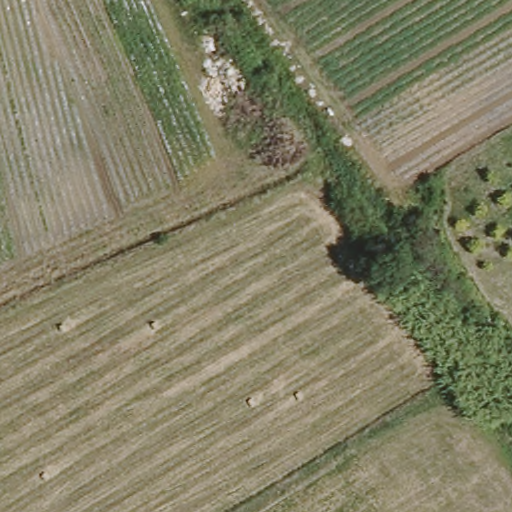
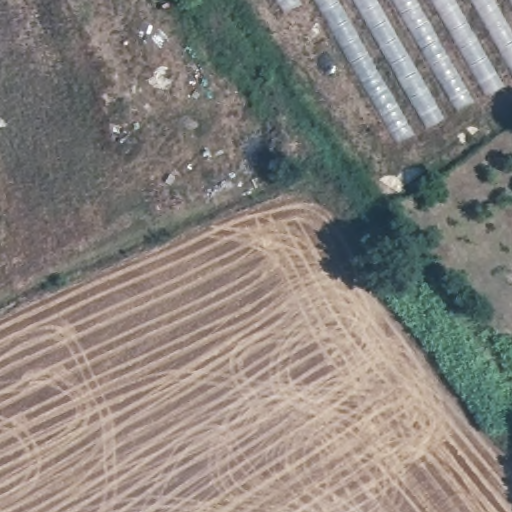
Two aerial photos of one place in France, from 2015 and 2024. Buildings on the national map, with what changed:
new [(276,0),(304,0),(284,13),(276,0)]
new [(397,143),(314,0),(512,0),(512,80),(397,143)]
new [(0,267),(0,210),(14,261),(0,267)]

